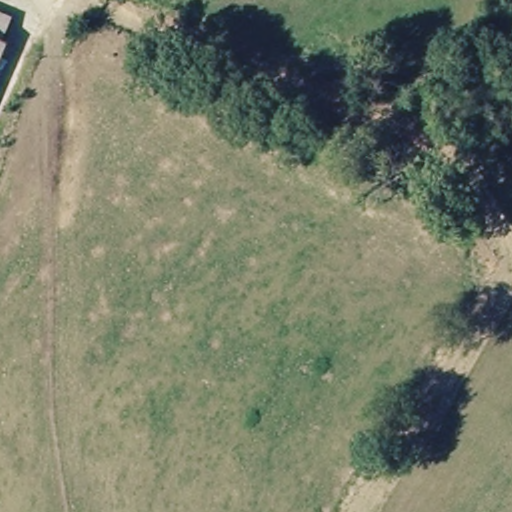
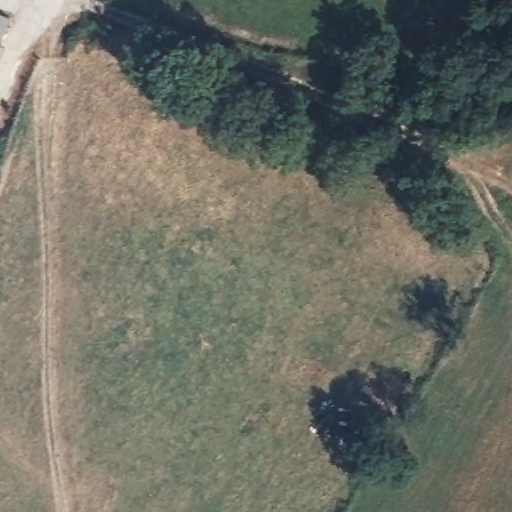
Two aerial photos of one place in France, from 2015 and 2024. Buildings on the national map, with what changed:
unchanged [(10,15),(0,37),(0,11),(10,15)]

